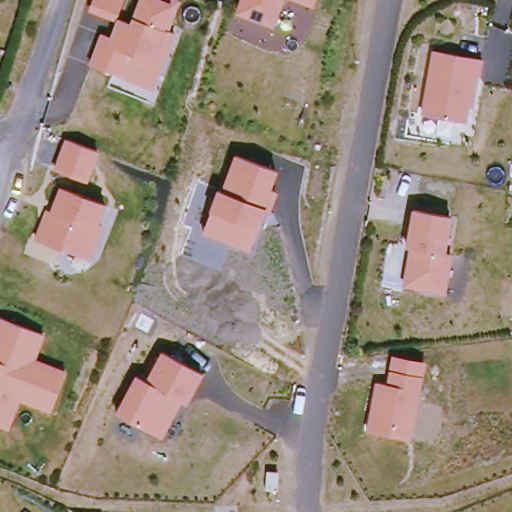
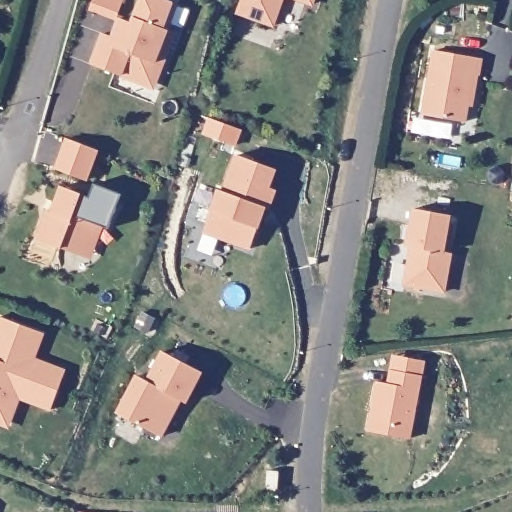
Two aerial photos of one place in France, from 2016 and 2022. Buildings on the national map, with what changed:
unchanged [(173,32),(179,34),(158,93),(88,67),(101,34),(111,39),(119,18),(131,23),(140,0),(183,0),(173,32)]
unchanged [(276,31),(236,16),(242,0),(287,0),(276,31)]
unchanged [(316,10),(287,0),(319,0),(316,10)]
unchanged [(486,60),(484,78),(481,77),(476,109),(472,108),(469,123),(422,114),(434,51),(486,60)]
unchanged [(103,152),(89,185),(54,171),(66,140),(103,152)]
unchanged [(281,172),(274,191),(281,192),(274,214),(267,211),(251,251),(204,234),(211,215),(210,214),(218,191),(222,192),(236,157),(281,172)]
unchanged [(108,205),(101,226),(105,227),(93,261),(35,240),(45,209),(52,212),(61,188),(108,205)]
unchanged [(454,214),(448,254),(456,255),(451,292),(407,283),(411,248),(407,247),(414,207),(454,214)]
unchanged [(38,360),(68,371),(52,415),(22,403),(11,432),(0,427),(0,318),(47,335),(38,360)]
unchanged [(206,373),(188,407),(183,403),(163,441),(116,414),(138,376),(145,380),(163,352),(206,373)]
unchanged [(429,362),(414,441),(366,433),(376,382),(389,385),(394,357),(429,362)]

